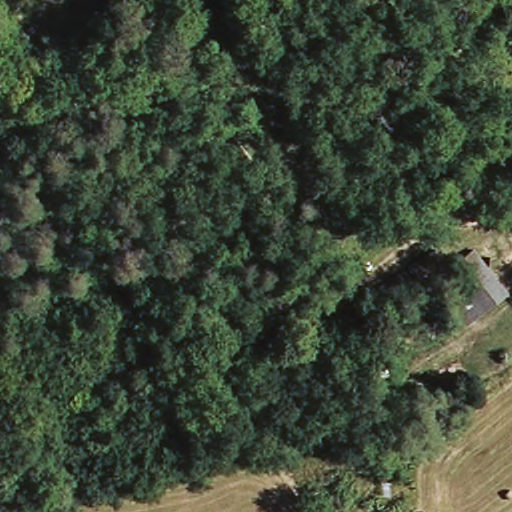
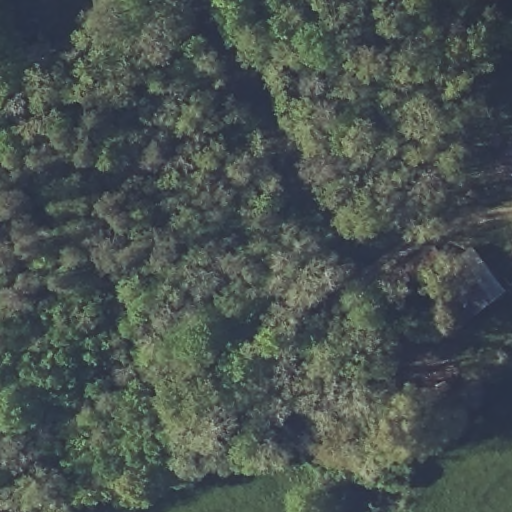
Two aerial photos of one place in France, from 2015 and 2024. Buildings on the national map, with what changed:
unchanged [(442,282),(468,265),(499,311),(450,343),(434,319),(457,303),(442,282)]
unchanged [(331,511),(325,502),(335,496),(340,505),(331,511)]

